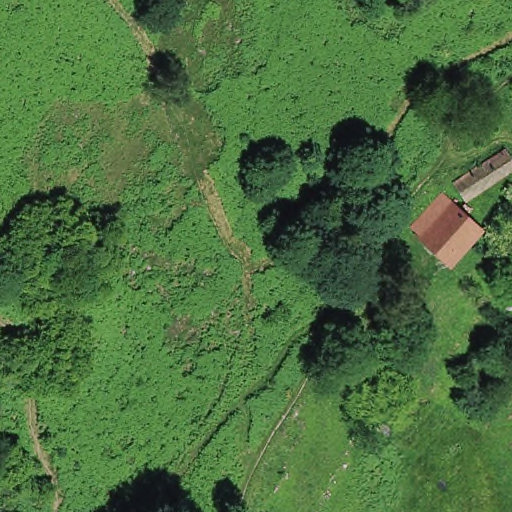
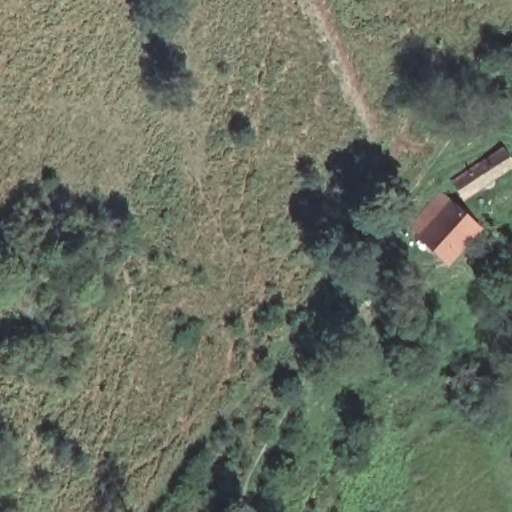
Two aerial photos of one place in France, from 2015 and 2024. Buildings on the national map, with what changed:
unchanged [(477,169),(490,160),(501,151),(512,168),(512,171),(489,186),(462,204),(451,186),(477,169)]
unchanged [(444,257),(425,239),(417,232),(448,200),(455,207),(482,234),(473,244),(452,265),(444,257)]

